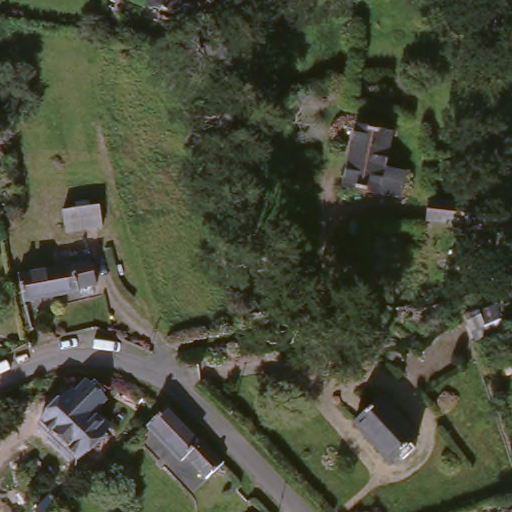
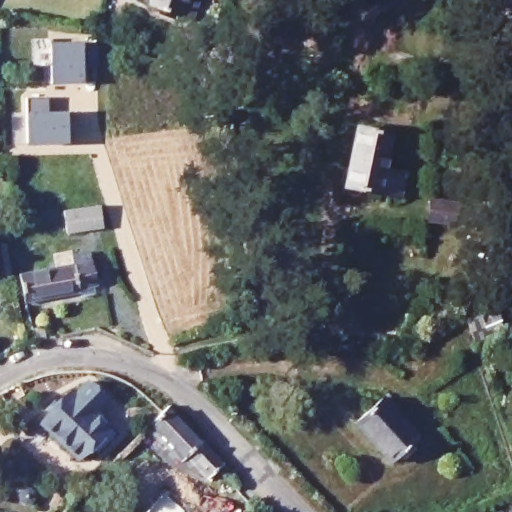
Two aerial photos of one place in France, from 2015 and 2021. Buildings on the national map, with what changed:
unchanged [(145,0),(193,0),(188,15),(143,3),(145,0)]
new [(97,62),(82,61),(83,83),(49,85),(47,42),(82,41),(96,41),(97,62)]
new [(48,95),(49,109),(65,109),(65,142),(25,144),(25,111),(25,98),(48,95)]
unchanged [(377,171),(397,176),(393,201),(342,191),(354,131),(383,137),(377,171)]
unchanged [(463,172),(460,183),(441,180),(443,168),(463,172)]
unchanged [(63,218),(95,213),(99,235),(67,241),(63,218)]
unchanged [(469,215),(484,215),(483,238),(471,237),(423,235),(424,213),(469,215)]
unchanged [(84,275),(83,269),(93,268),(94,273),(98,272),(102,297),(84,301),(84,304),(30,315),(25,287),(84,275)]
unchanged [(70,468),(33,431),(65,399),(68,402),(77,394),(92,408),(83,417),(102,436),(70,468)]
unchanged [(411,446),(383,471),(349,431),(377,408),(411,446)]
unchanged [(175,471),(140,434),(153,422),(157,419),(164,413),(218,472),(201,488),(180,467),(175,471)]
unchanged [(53,512),(36,512),(45,503),(53,512)]

